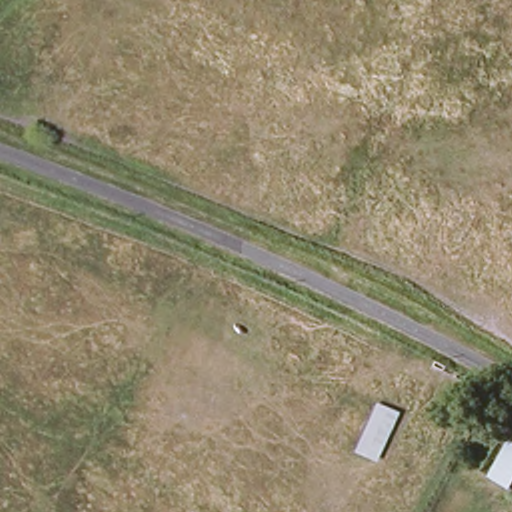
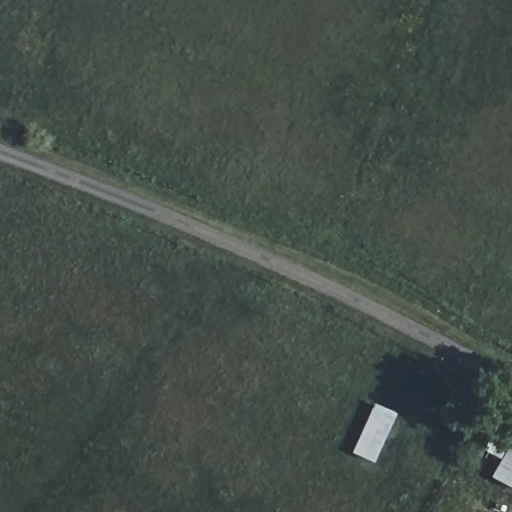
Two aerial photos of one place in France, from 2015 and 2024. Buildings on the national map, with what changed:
unchanged [(367,467),(348,458),(368,410),(391,420),(367,467)]
unchanged [(482,484),(510,439),(512,439),(512,490),(509,495),(482,484)]

